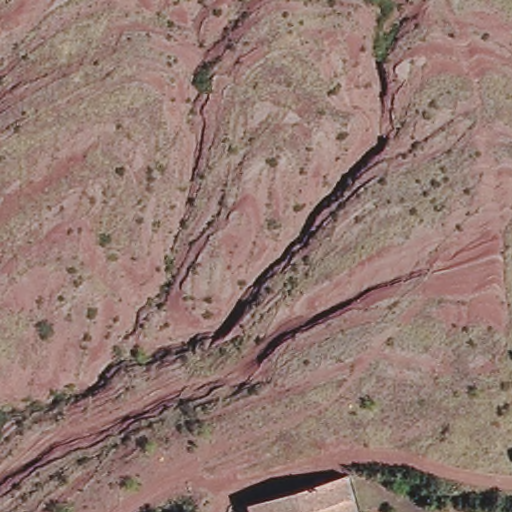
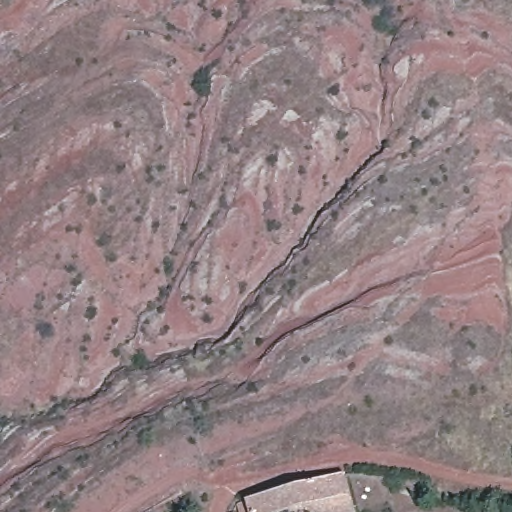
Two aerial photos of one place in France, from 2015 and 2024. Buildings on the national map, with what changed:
unchanged [(230,501),(350,471),(360,512),(226,512),(232,510),(230,501)]

